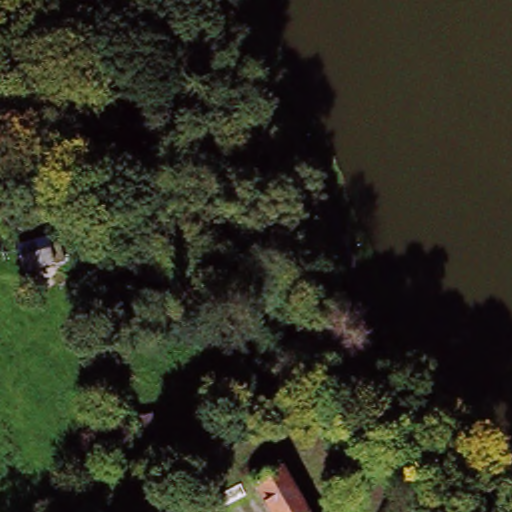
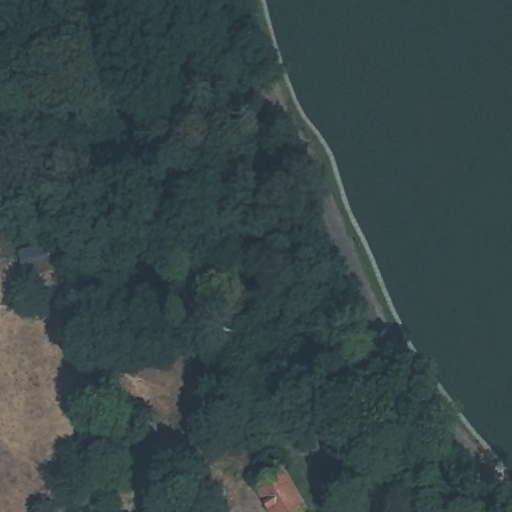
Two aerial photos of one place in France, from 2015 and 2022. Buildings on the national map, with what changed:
unchanged [(14,253),(52,241),(59,266),(22,277),(14,253)]
unchanged [(148,447),(141,421),(154,418),(161,443),(148,447)]
unchanged [(251,470),(277,457),(306,512),(273,512),(251,470)]

